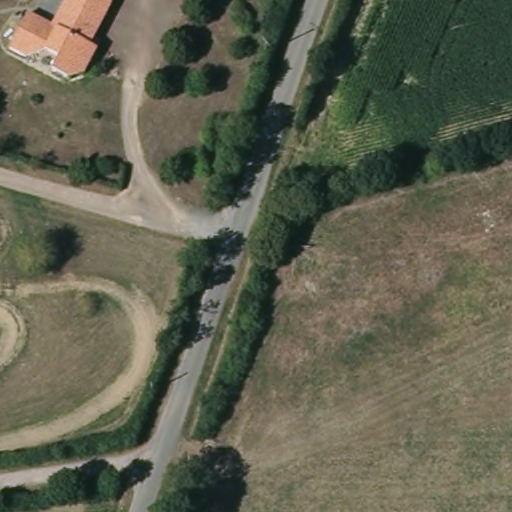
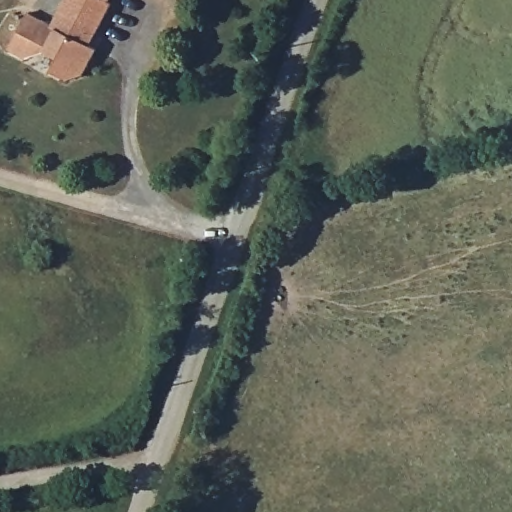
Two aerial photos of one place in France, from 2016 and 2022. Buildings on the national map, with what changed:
unchanged [(92,61),(76,84),(59,89),(44,78),(51,68),(40,59),(20,62),(5,49),(26,18),(48,33),(70,0),(83,0),(86,2),(87,0),(118,0),(119,0),(108,17),(110,18),(91,46),(84,56),(92,61)]

